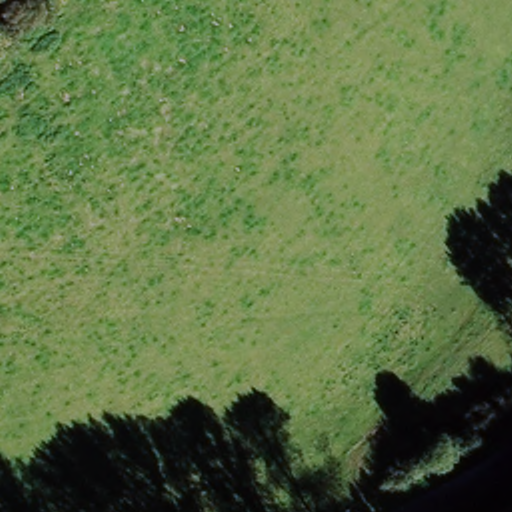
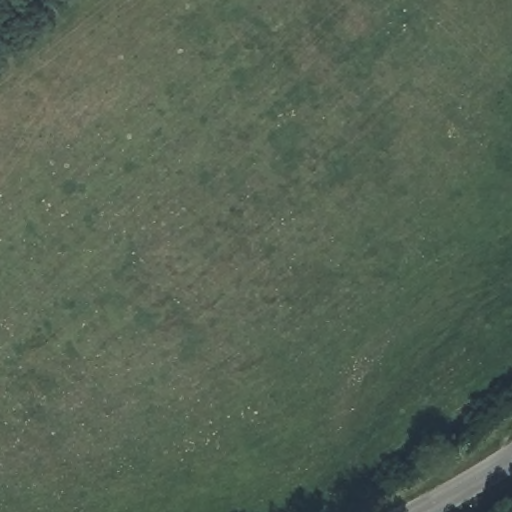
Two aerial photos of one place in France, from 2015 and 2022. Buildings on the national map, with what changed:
[]

